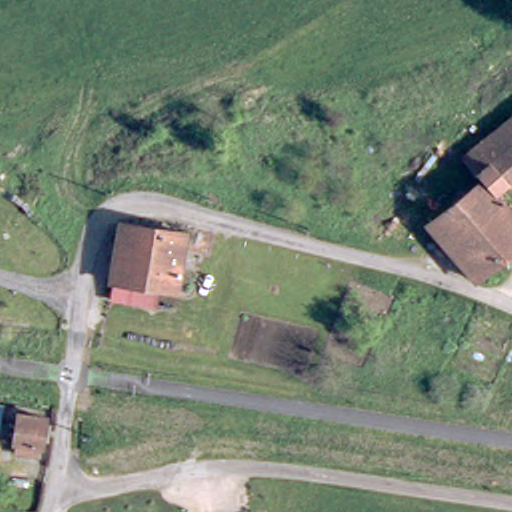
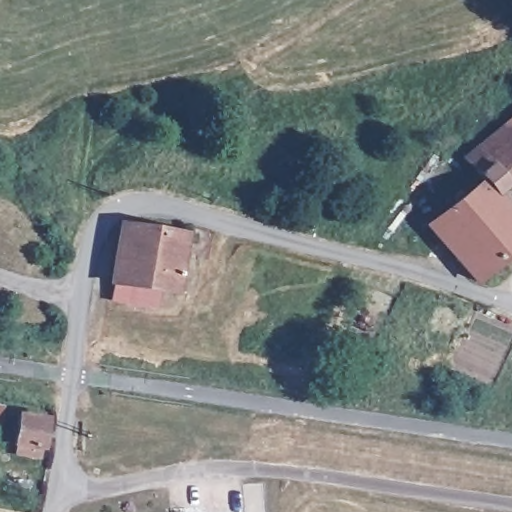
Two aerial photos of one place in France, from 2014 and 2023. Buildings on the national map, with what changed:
unchanged [(456,154),(512,111),(512,172),(488,192),(477,179),(468,168),(456,154)]
unchanged [(462,276),(419,224),(477,179),(488,192),(512,220),(512,240),(466,277),(462,276)]
unchanged [(107,301),(110,284),(106,284),(107,276),(115,225),(179,234),(170,288),(169,293),(154,291),(152,306),(107,301)]
unchanged [(40,417),(36,447),(9,443),(14,415),(40,417)]

